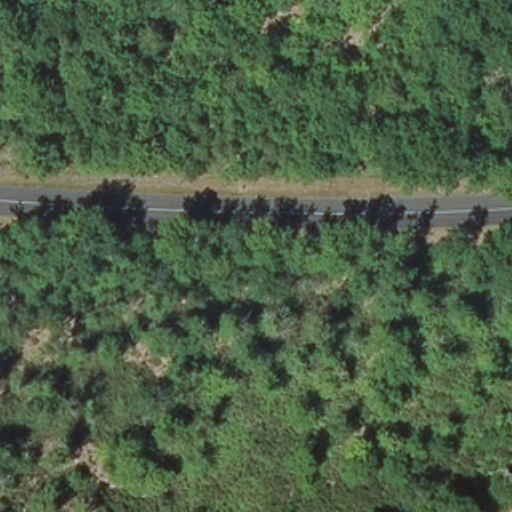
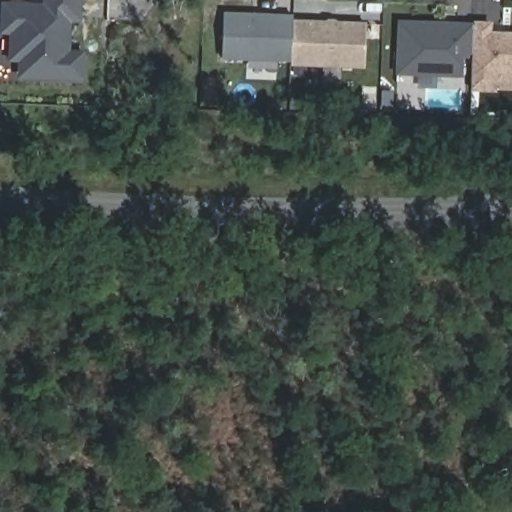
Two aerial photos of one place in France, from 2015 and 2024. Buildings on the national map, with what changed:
new [(8,5),(50,7),(50,0),(84,0),(83,20),(73,20),(71,53),(86,54),(86,79),(22,77),(23,59),(15,59),(16,32),(6,31),(8,5)]
new [(294,19),(367,21),(367,68),(292,67),(292,62),(223,60),(226,13),(295,15),(294,19)]
new [(459,24),(473,25),(471,54),(463,54),(463,76),(399,75),(402,22),(443,23),(443,29),(459,29),(459,24)]
new [(473,25),(473,22),(492,22),(492,31),(512,32),(512,82),(498,82),(497,91),(471,90),(471,54),(473,25)]

